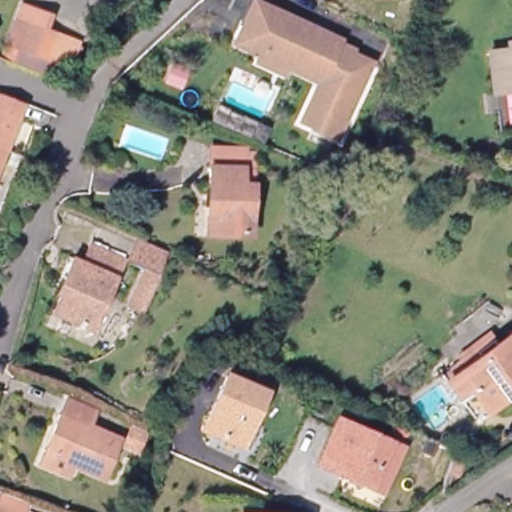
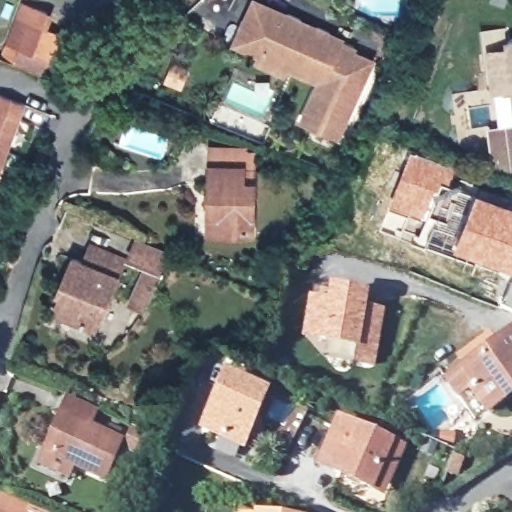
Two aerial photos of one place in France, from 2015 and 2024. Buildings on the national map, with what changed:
unchanged [(267,0),(283,9),(288,11),(293,10),(304,15),(305,20),(317,26),(321,24),(332,30),(333,35),(343,40),(357,47),(353,54),(373,64),(332,141),(298,123),(316,90),(290,76),(286,84),(254,67),(257,59),(232,46),(246,21),(257,0),(267,0)]
unchanged [(43,66),(14,55),(12,59),(2,55),(11,33),(17,17),(42,26),(36,43),(50,48),(43,66)]
unchanged [(507,73),(488,75),(487,53),(506,52),(505,43),(512,42),(512,121),(507,73)]
unchanged [(0,166),(0,91),(25,101),(0,166)]
unchanged [(217,107),(270,130),(262,147),(210,124),(217,107)]
new [(410,149),(457,168),(450,185),(442,182),(425,221),(387,204),(410,149)]
unchanged [(205,191),(206,151),(238,152),(239,155),(249,155),(248,172),(240,172),(240,186),(249,187),(248,223),(214,222),(203,221),(205,191)]
new [(425,221),(442,182),(450,185),(512,207),(512,272),(487,263),(447,253),(424,244),(429,232),(422,228),(425,221)]
unchanged [(164,249),(156,268),(127,256),(135,237),(164,249)]
unchanged [(80,263),(87,248),(120,261),(90,330),(51,312),(59,294),(52,291),(60,277),(67,258),(80,263)]
unchanged [(144,267),(157,272),(140,308),(128,302),(144,267)]
new [(512,280),(512,311),(501,306),(512,280)]
new [(354,349),(321,343),(297,339),(303,297),(327,301),(329,287),(367,293),(366,307),(384,311),(373,368),(352,364),(354,349)]
unchanged [(447,390),(460,381),(468,374),(461,364),(490,342),(498,352),(512,342),(512,399),(487,417),(470,393),(457,402),(447,390)]
unchanged [(248,447),(240,444),(202,430),(222,374),(261,388),(247,426),(255,429),(248,447)]
unchanged [(36,458),(40,448),(55,410),(58,411),(62,401),(64,396),(92,407),(92,410),(87,422),(117,435),(102,473),(72,461),(68,471),(36,458)]
unchanged [(137,444),(124,438),(131,421),(131,420),(145,425),(145,426),(137,444)]
unchanged [(372,488),(320,468),(337,423),(401,447),(392,471),(384,492),(372,488)]
unchanged [(450,445),(460,451),(450,468),(440,463),(442,458),(450,445)]
unchanged [(29,512),(0,512),(7,491),(33,500),(30,510),(29,512)]
unchanged [(34,512),(29,512),(30,510),(34,512)]

